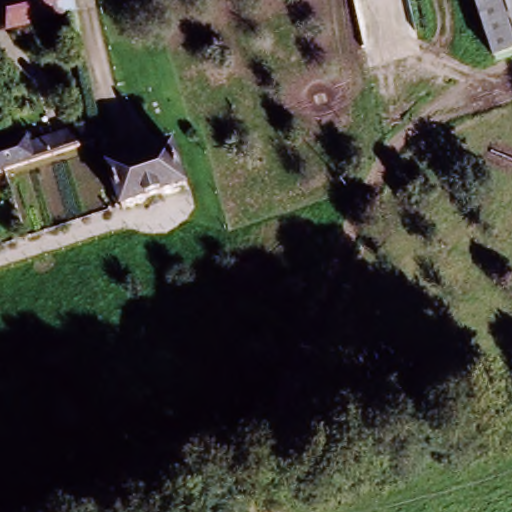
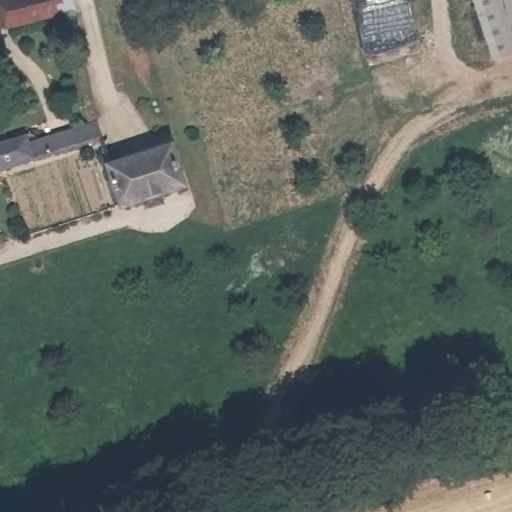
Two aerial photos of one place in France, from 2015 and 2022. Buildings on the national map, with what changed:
unchanged [(72,12),(39,21),(3,30),(0,19),(0,0),(69,0),(72,12)]
unchanged [(512,57),(500,61),(482,0),(512,0),(512,57)]
unchanged [(0,175),(0,147),(23,140),(26,147),(92,125),(99,144),(3,175),(0,175)]
unchanged [(120,212),(105,166),(175,143),(190,188),(120,212)]

